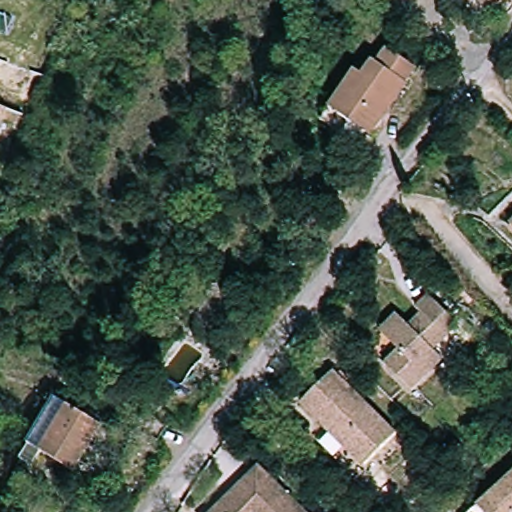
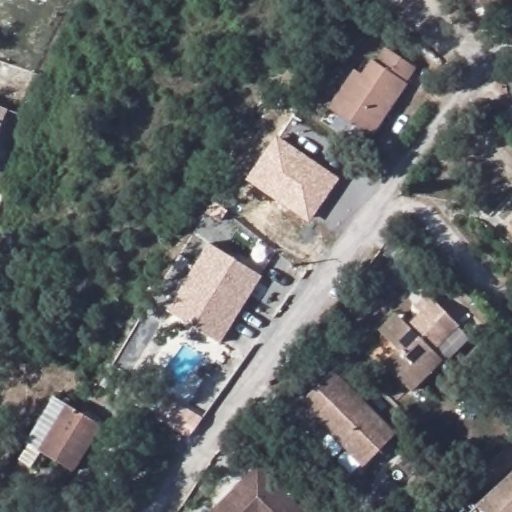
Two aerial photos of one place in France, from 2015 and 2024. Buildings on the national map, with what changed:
unchanged [(493,15),(480,0),(510,0),(493,15)]
unchanged [(329,110),(357,74),(364,79),(375,65),(379,69),(391,53),(417,73),(405,89),(407,90),(369,141),(336,116),(329,110)]
unchanged [(0,123),(0,108),(6,110),(0,123)]
new [(339,178),(308,222),(245,180),(276,136),(339,178)]
new [(262,277),(220,343),(167,310),(207,242),(262,277)]
unchanged [(389,343),(379,335),(393,317),(403,325),(412,332),(424,317),(415,309),(426,295),(458,321),(435,350),(447,360),(419,395),(390,371),(404,354),(389,343)]
unchanged [(300,404),(333,372),(395,435),(361,466),(326,431),(300,404)]
unchanged [(70,470),(26,444),(48,406),(93,432),(70,470)]
unchanged [(261,463),(275,480),(305,512),(207,512),(243,479),(261,463)]
unchanged [(485,512),(480,507),(512,476),(512,512),(485,512)]

